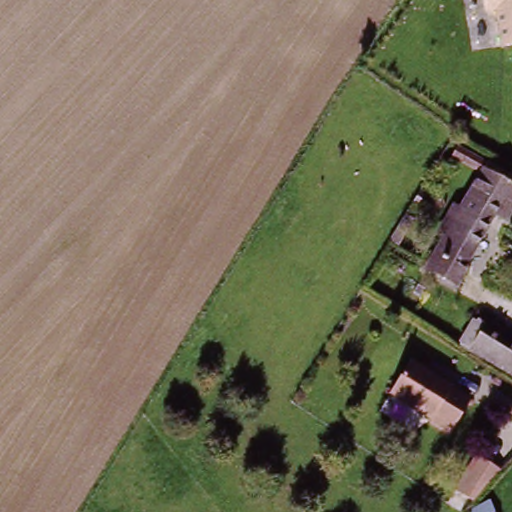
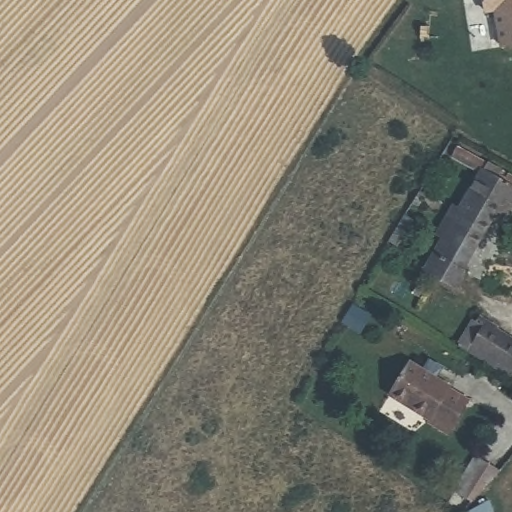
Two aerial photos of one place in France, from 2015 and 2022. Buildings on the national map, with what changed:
unchanged [(509,50),(502,14),(493,16),(490,0),(512,0),(512,50),(509,50)]
unchanged [(512,199),(512,214),(511,215),(502,231),(486,221),(445,288),(426,276),(456,226),(450,223),(476,177),(484,181),(503,193),(512,199)]
unchanged [(484,326),(512,344),(512,385),(465,354),(468,350),(479,333),(484,326)]
unchanged [(442,433),(384,391),(406,361),(464,403),(442,433)]

